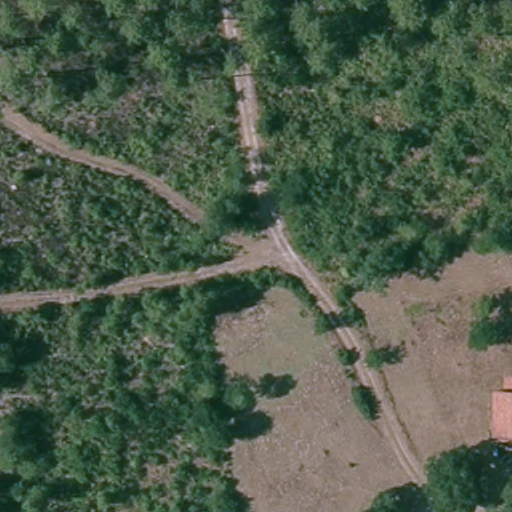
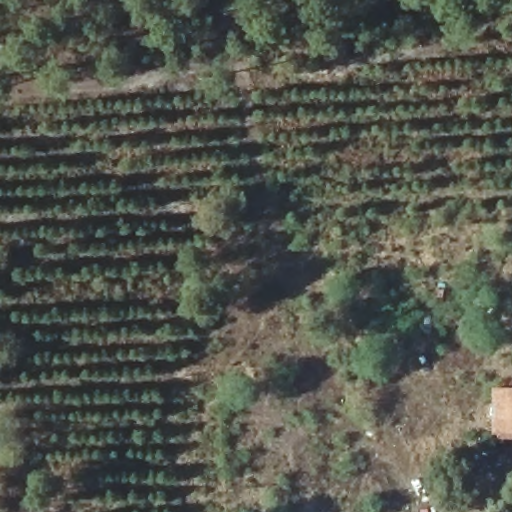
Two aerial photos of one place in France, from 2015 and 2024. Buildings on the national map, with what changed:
unchanged [(512,388),(512,432),(503,432),(502,389),(512,388)]

